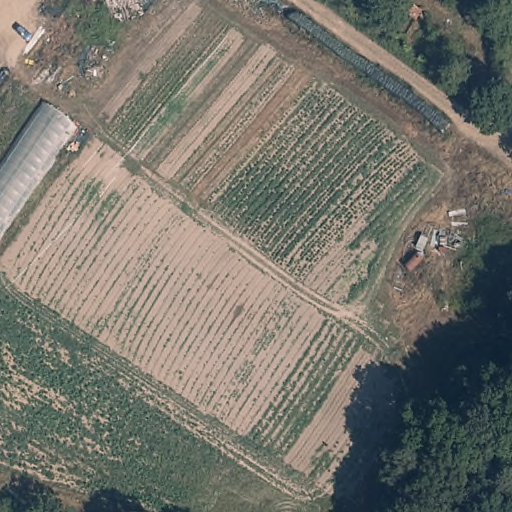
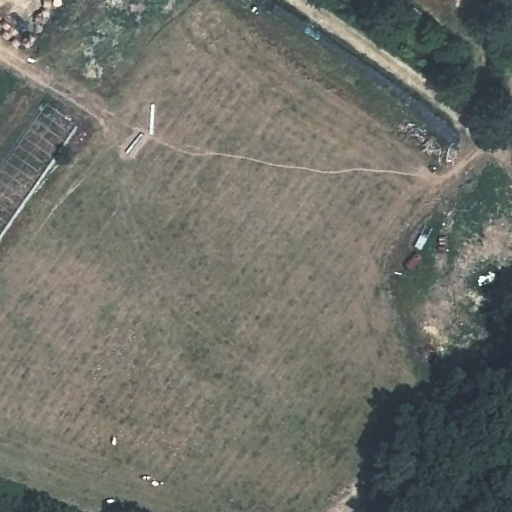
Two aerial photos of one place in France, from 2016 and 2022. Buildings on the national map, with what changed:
unchanged [(71,123),(0,229),(0,170),(45,104),(71,123)]

